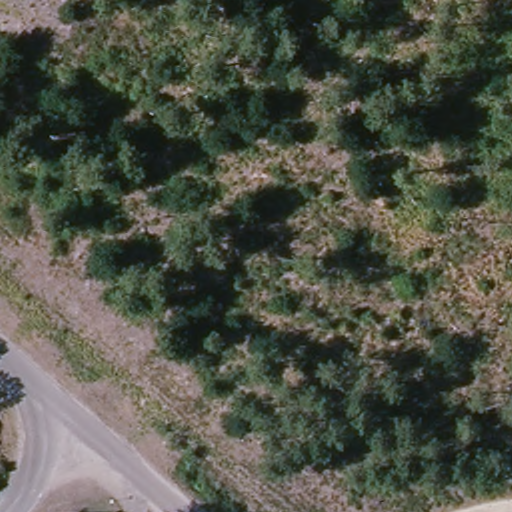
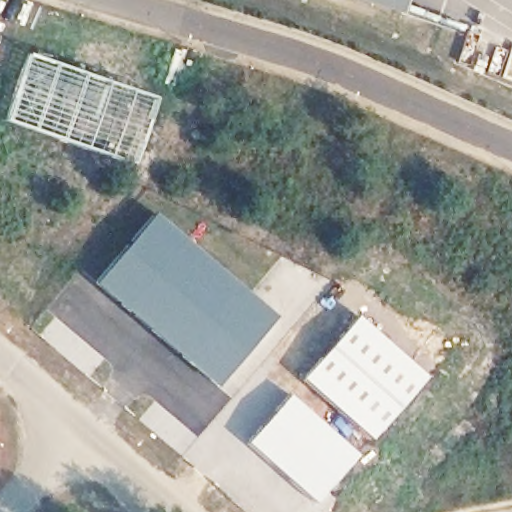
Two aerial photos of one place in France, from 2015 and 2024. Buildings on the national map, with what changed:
new [(401,16),(354,0),(406,0),(401,16)]
new [(27,52),(130,87),(158,99),(144,142),(133,167),(3,120),(27,52)]
new [(154,211),(236,281),(275,316),(217,387),(160,341),(93,282),(154,211)]
new [(426,377),(371,440),(302,380),(358,317),(426,377)]
new [(359,458),(316,505),(246,442),(289,395),(359,458)]

